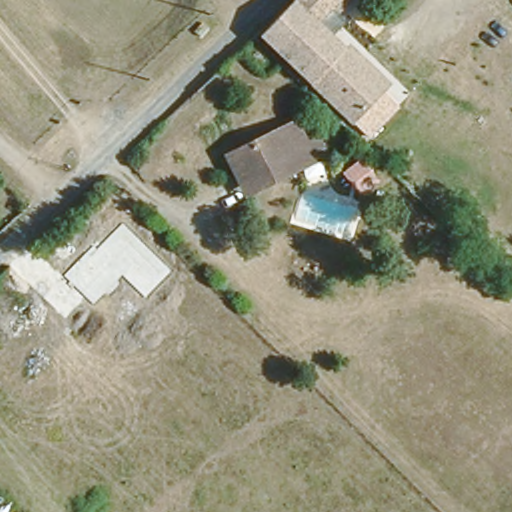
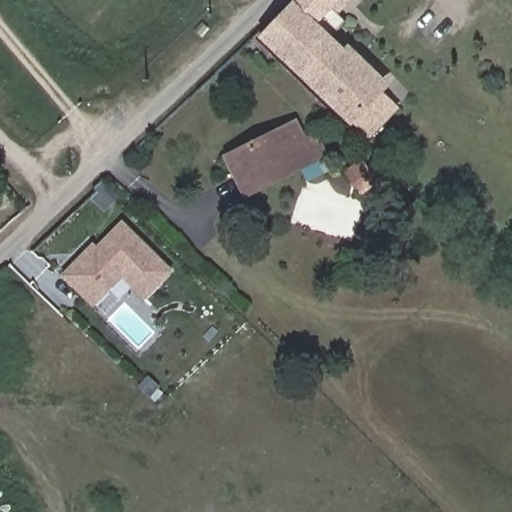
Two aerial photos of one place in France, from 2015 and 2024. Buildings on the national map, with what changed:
unchanged [(350,116),(337,103),(263,30),(289,0),(301,0),(322,20),(347,43),(373,67),(387,81),(379,88),(399,107),(369,139),(350,116)]
unchanged [(341,0),(322,20),(301,0),(341,0)]
unchanged [(243,187),(239,179),(226,148),(295,115),(309,146),(293,153),(297,162),(243,187)]
new [(123,220),(175,271),(145,300),(122,278),(94,307),(62,275),(93,242),(97,245),(123,220)]

